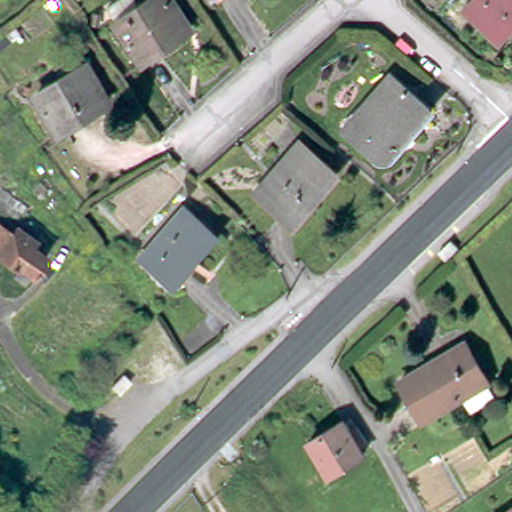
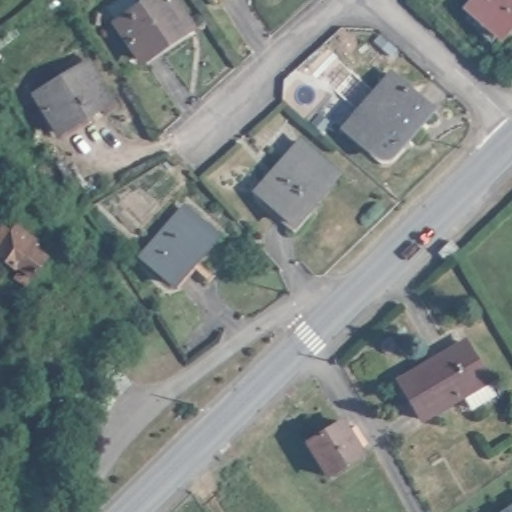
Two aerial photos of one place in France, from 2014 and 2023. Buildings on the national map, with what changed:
unchanged [(140,0),(146,9),(159,0),(176,0),(195,28),(147,60),(112,9),(125,0),(140,0)]
unchanged [(468,0),(512,0),(512,21),(502,31),(468,0)]
unchanged [(88,56),(102,78),(95,83),(105,99),(57,126),(35,88),(88,56)]
unchanged [(427,107),(385,156),(376,156),(360,142),(358,145),(341,130),(388,74),(427,107)]
unchanged [(332,165),(288,216),(255,187),(274,165),(271,163),(295,135),(332,165)]
unchanged [(216,230),(174,280),(142,251),(185,202),(216,230)]
unchanged [(15,226),(33,240),(32,241),(29,246),(45,257),(32,276),(16,265),(15,268),(0,258),(0,210),(18,222),(15,226)]
unchanged [(454,262),(446,255),(455,246),(459,242),(466,250),(460,255),(454,262)]
unchanged [(486,368),(483,370),(490,383),(468,396),(461,384),(418,409),(395,370),(463,330),(486,368)]
unchanged [(135,386),(134,387),(122,400),(115,392),(128,380),(135,386)]
unchanged [(328,470),(308,437),(343,415),(350,426),(357,421),(367,437),(360,443),(363,450),(328,470)]
unchanged [(512,501),(512,512),(496,512),(512,501)]

